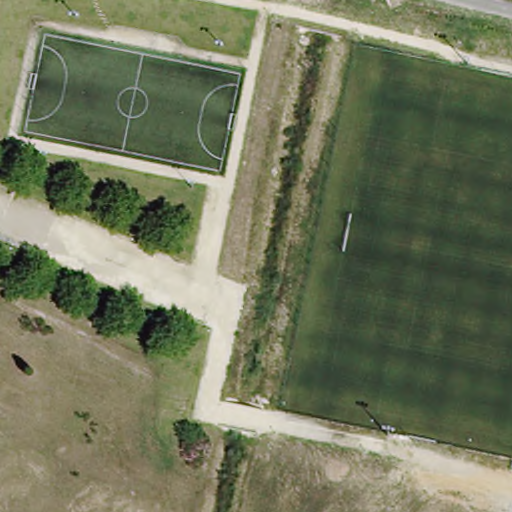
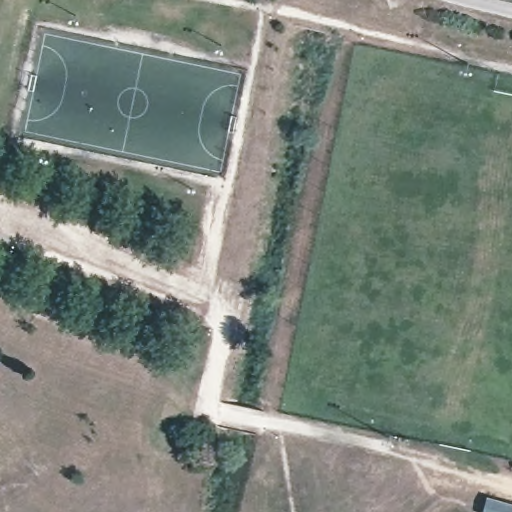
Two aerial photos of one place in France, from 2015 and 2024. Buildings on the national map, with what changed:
new [(512,512),(484,512),(487,497),(512,504),(512,512)]

